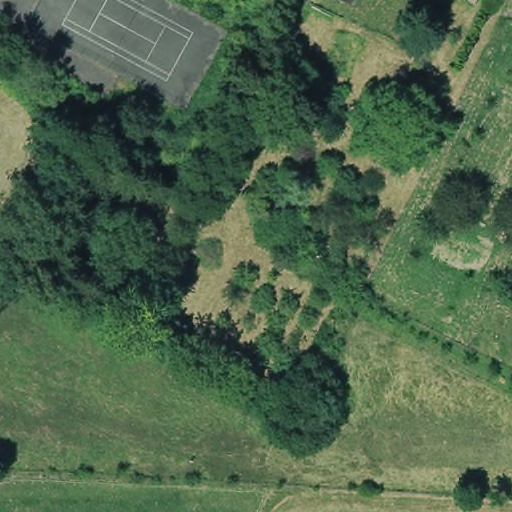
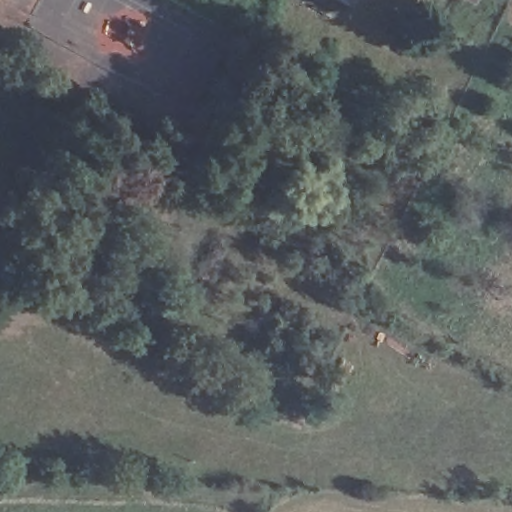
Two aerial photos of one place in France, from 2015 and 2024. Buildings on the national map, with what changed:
unchanged [(335,0),(353,0),(350,6),(335,0)]
unchanged [(451,0),(478,0),(474,10),(451,0)]

